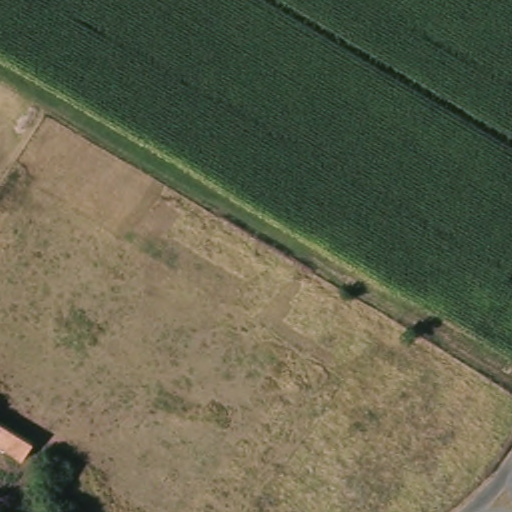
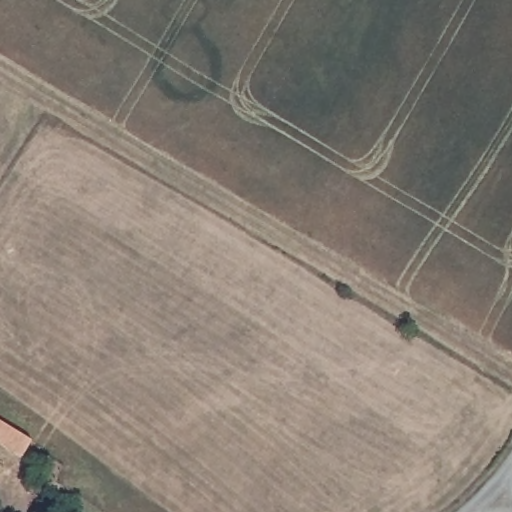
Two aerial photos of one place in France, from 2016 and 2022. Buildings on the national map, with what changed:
unchanged [(0,445),(0,423),(32,441),(22,456),(0,445)]

